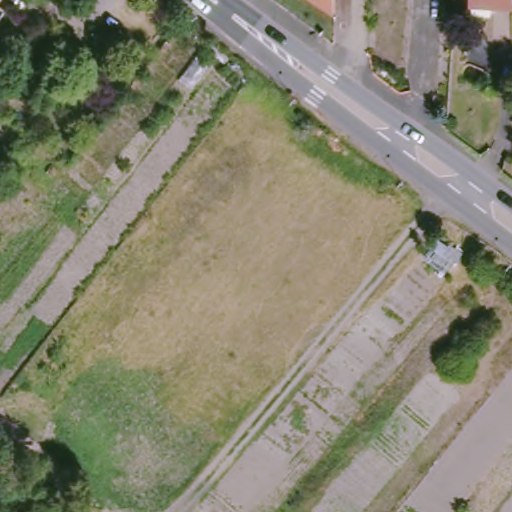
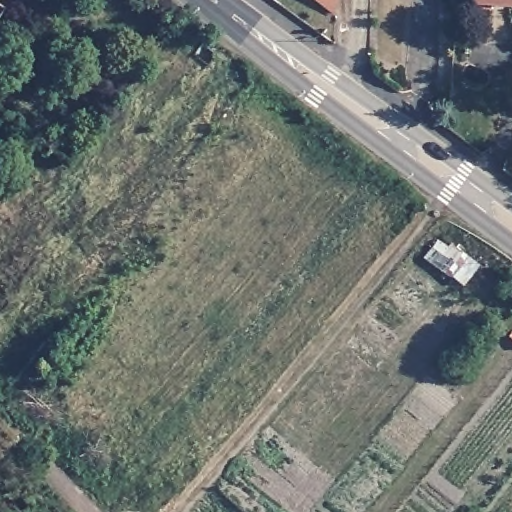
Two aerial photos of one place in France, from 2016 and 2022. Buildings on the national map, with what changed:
unchanged [(314,0),(332,0),(332,12),(314,0)]
unchanged [(510,5),(489,4),(489,0),(510,0),(510,5)]
unchanged [(4,12),(0,18),(0,9),(4,12)]

